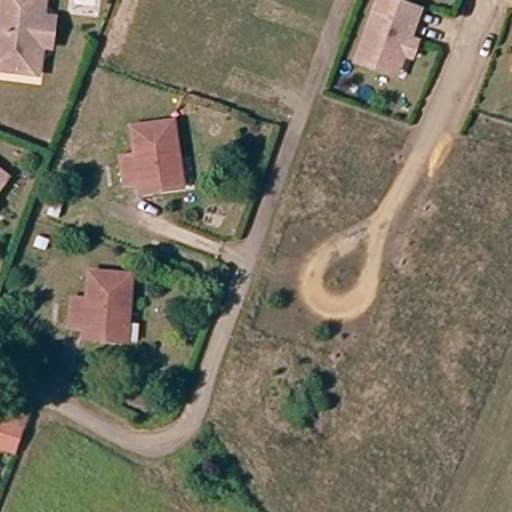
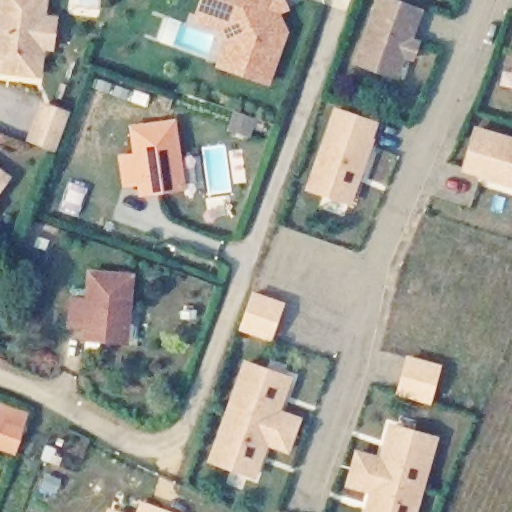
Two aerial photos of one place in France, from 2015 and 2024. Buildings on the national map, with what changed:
unchanged [(40,48),(39,60),(42,64),(40,78),(0,72),(0,40),(6,0),(49,0),(45,21),(57,23),(54,50),(40,48)]
new [(271,0),(274,8),(284,3),(289,14),(280,19),(288,38),(271,88),(232,75),(222,71),(231,47),(225,33),(200,24),(203,14),(208,0),(271,0)]
unchanged [(356,65),(379,0),(383,0),(420,12),(410,41),(417,45),(413,60),(405,57),(400,72),(397,80),(373,71),(356,65)]
unchanged [(50,95),(75,105),(56,152),(33,143),(50,95)]
new [(350,206),(305,190),(335,107),(378,122),(350,206)]
unchanged [(141,179),(124,181),(121,153),(140,151),(138,125),(176,121),(183,190),(158,192),(142,194),(141,179)]
new [(512,137),(512,188),(460,174),(475,125),(512,137)]
unchanged [(5,181),(0,187),(0,177),(5,181)]
unchanged [(82,319),(72,318),(75,289),(88,291),(90,265),(135,271),(126,336),(102,333),(81,330),(82,319)]
new [(239,330),(253,291),(285,303),(272,342),(239,330)]
new [(396,395),(407,355),(442,365),(431,405),(396,395)]
new [(282,411),(301,417),(288,454),(268,449),(257,481),(208,465),(242,361),(292,379),(282,411)]
unchanged [(24,426),(15,451),(0,444),(0,418),(24,426)]
new [(419,512),(364,512),(369,494),(345,487),(355,451),(380,457),(389,424),(440,437),(419,512)]
new [(140,500),(173,512),(134,512),(140,500)]
new [(106,507),(122,512),(104,512),(106,507)]

